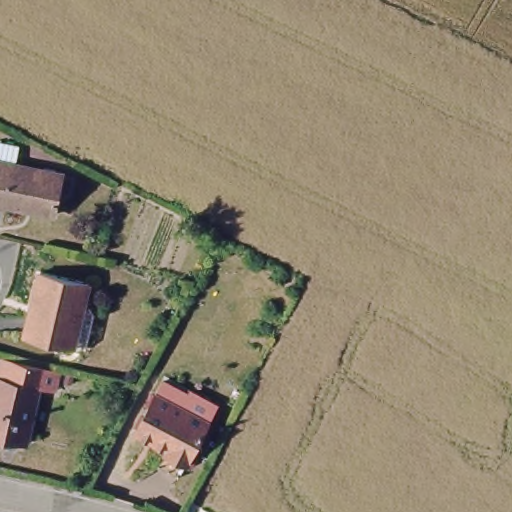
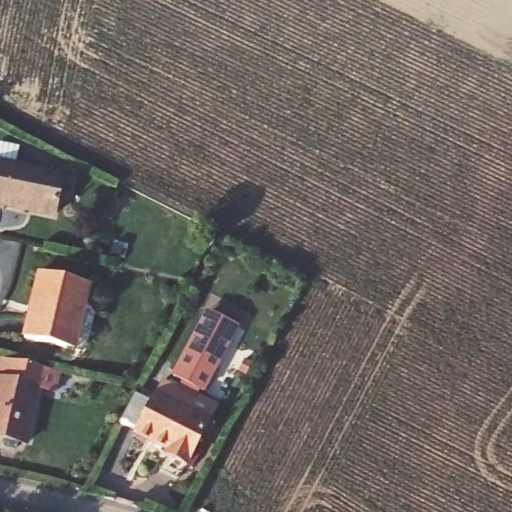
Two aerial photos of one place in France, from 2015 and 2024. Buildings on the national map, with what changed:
unchanged [(0,203),(0,159),(66,173),(56,211),(7,199),(6,204),(0,203)]
unchanged [(87,273),(82,294),(86,295),(92,304),(84,334),(75,340),(22,328),(27,307),(33,308),(38,285),(32,283),(38,261),(87,273)]
new [(207,310),(239,326),(205,393),(171,376),(207,310)]
unchanged [(50,371),(46,388),(39,387),(25,442),(0,437),(0,359),(50,371)]
unchanged [(187,460),(167,449),(170,444),(139,426),(157,391),(210,419),(187,460)]

